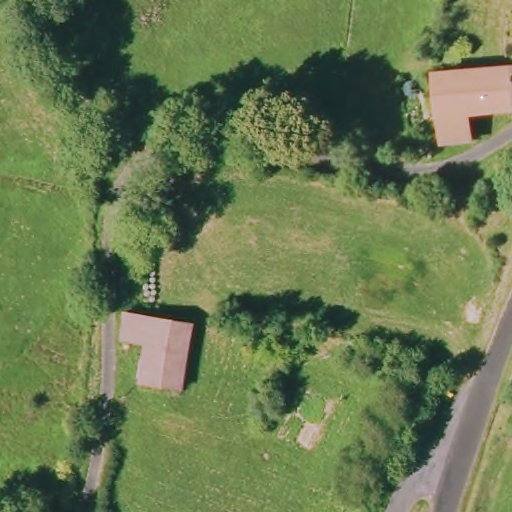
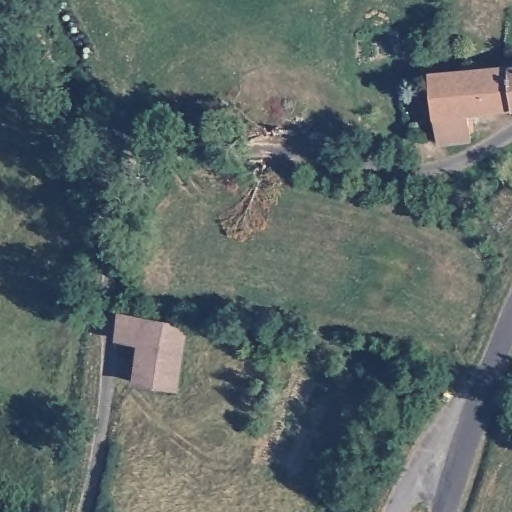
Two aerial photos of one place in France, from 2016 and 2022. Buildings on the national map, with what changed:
unchanged [(512,74),(512,114),(476,118),(477,146),(445,149),(443,121),(440,81),(512,74)]
unchanged [(183,396),(144,391),(151,350),(123,346),(125,321),(153,326),(193,331),(183,396)]

